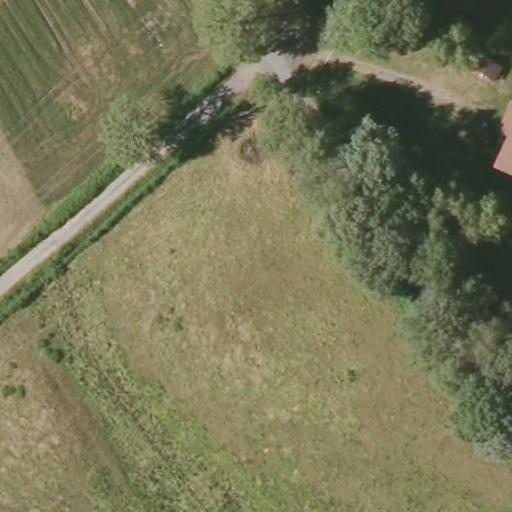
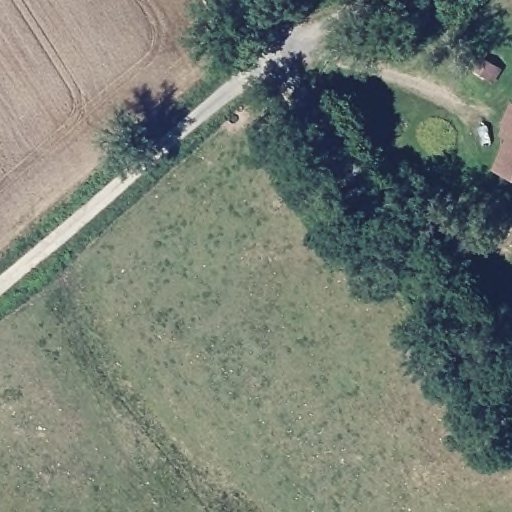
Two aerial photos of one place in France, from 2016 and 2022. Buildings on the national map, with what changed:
unchanged [(475,90),(469,87),(455,80),(463,66),(477,73),(482,76),(475,90)]
unchanged [(507,130),(503,129),(510,109),(512,109),(512,143),(505,140),(507,130)]
unchanged [(512,143),(512,180),(500,176),(512,143)]

